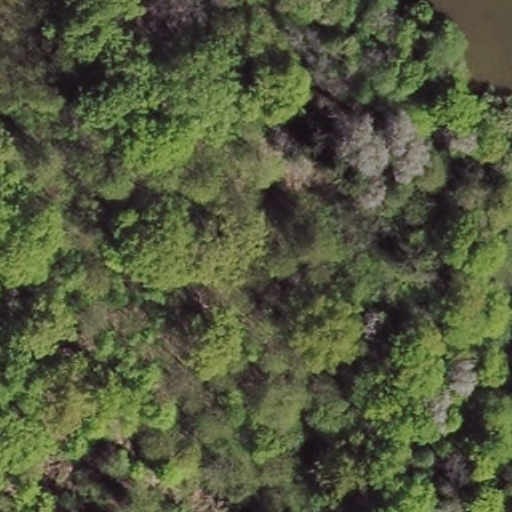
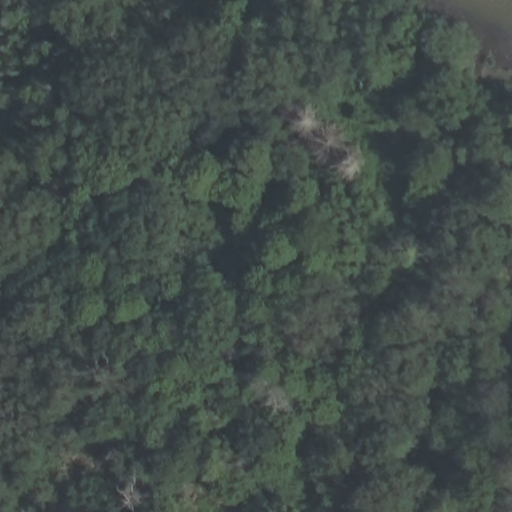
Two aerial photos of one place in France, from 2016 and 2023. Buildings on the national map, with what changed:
[]

